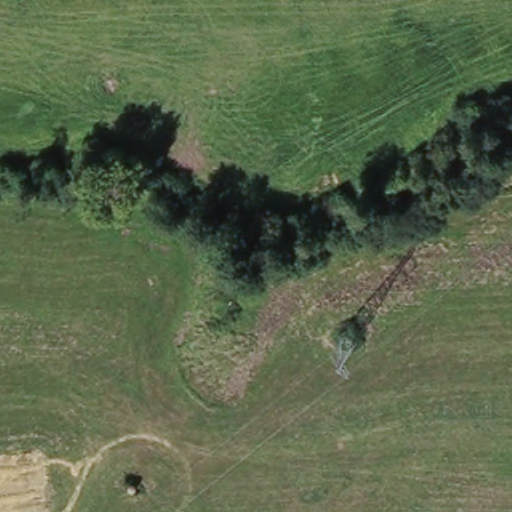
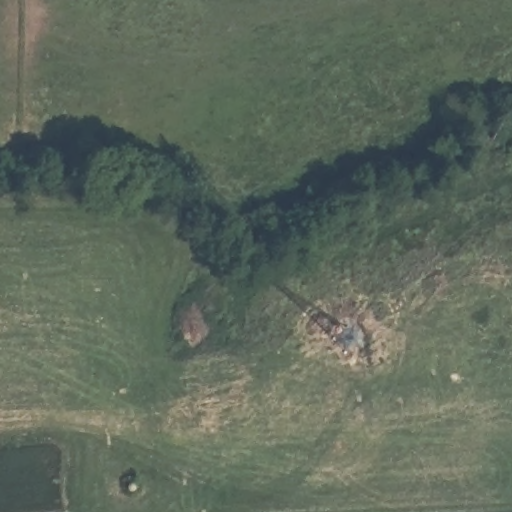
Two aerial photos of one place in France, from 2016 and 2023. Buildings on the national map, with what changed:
unchanged [(136,487),(136,491),(133,494),(129,494),(125,492),(123,490),(123,486),(124,483),(127,482),(133,483),(136,487)]

